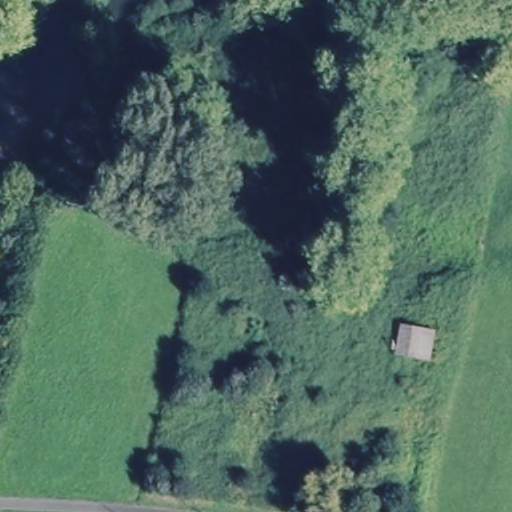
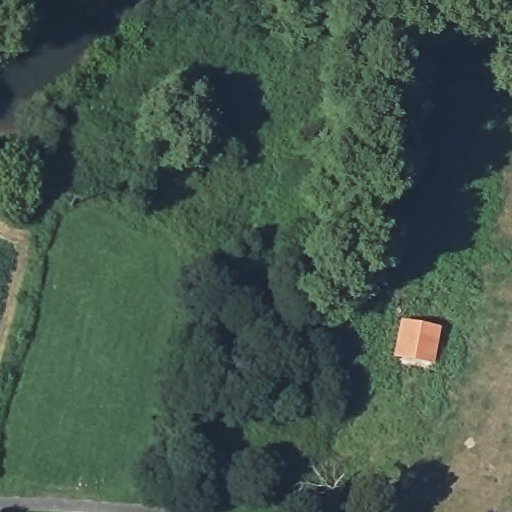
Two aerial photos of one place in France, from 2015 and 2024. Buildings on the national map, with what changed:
unchanged [(440,335),(432,365),(393,359),(399,328),(440,335)]

